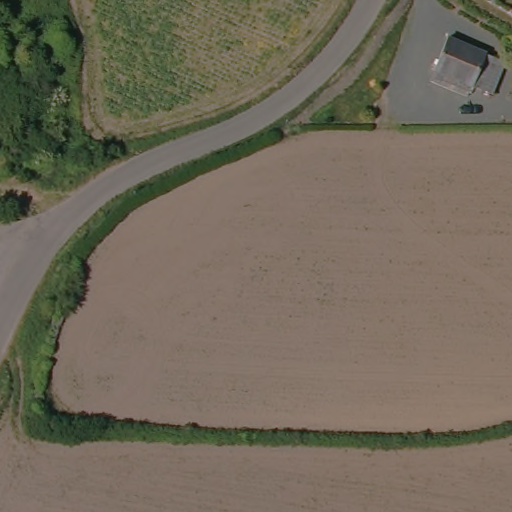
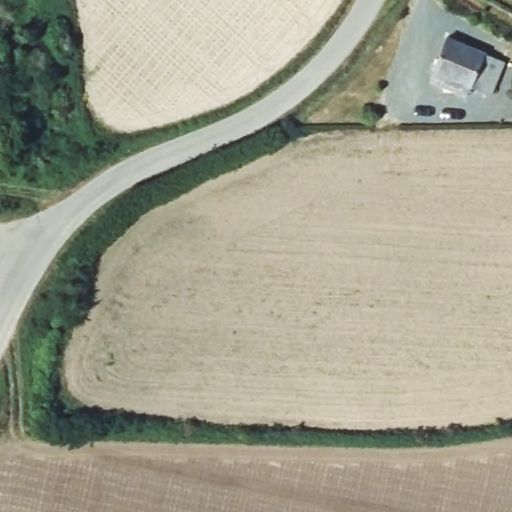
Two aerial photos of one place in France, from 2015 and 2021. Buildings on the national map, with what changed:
unchanged [(503,60),(494,84),(471,75),(463,95),(431,82),(449,39),(503,60)]

